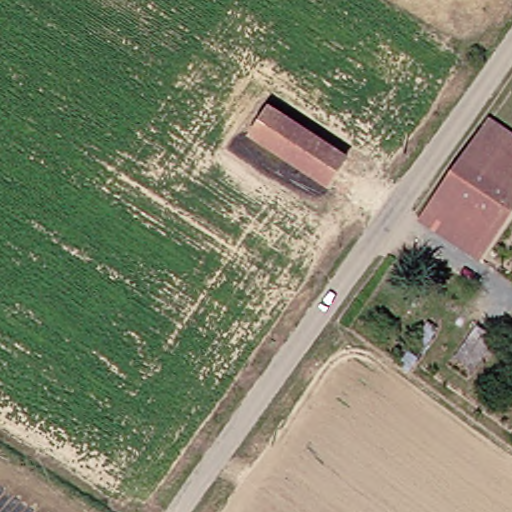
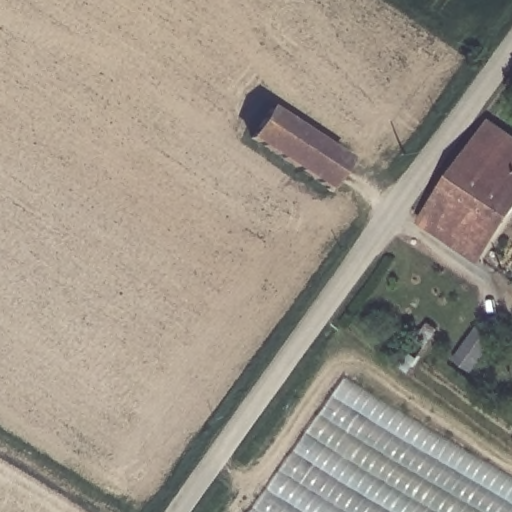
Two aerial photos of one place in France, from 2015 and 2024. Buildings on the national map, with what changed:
unchanged [(340,152),(320,181),(242,131),(262,100),(340,152)]
unchanged [(421,215),(487,114),(512,132),(512,203),(510,206),(476,254),(421,215)]
unchanged [(466,356),(487,326),(503,338),(483,368),(466,356)]
new [(512,474),(512,512),(252,512),(347,375),(512,474)]

